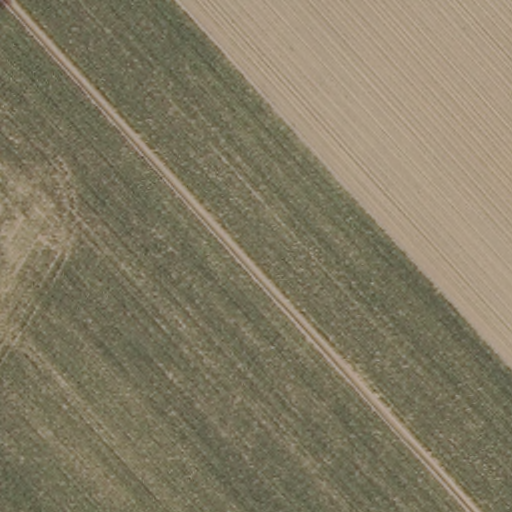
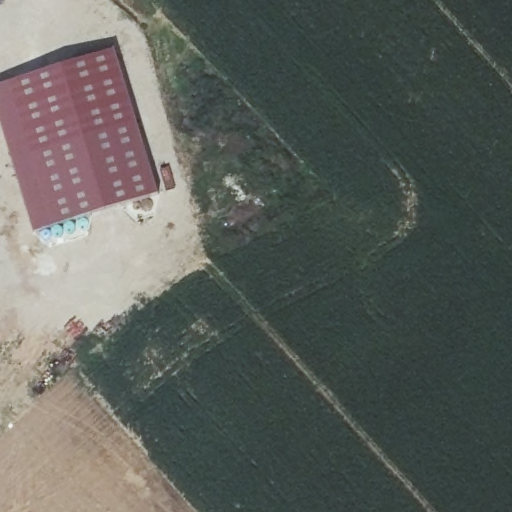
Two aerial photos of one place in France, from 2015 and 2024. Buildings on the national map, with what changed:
new [(113,48),(159,194),(33,233),(0,125),(0,83),(113,48)]

